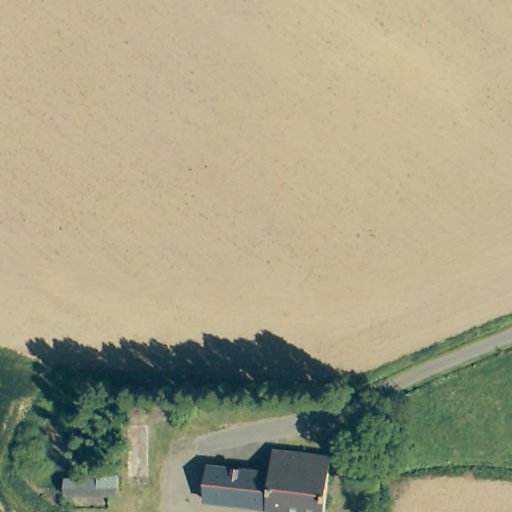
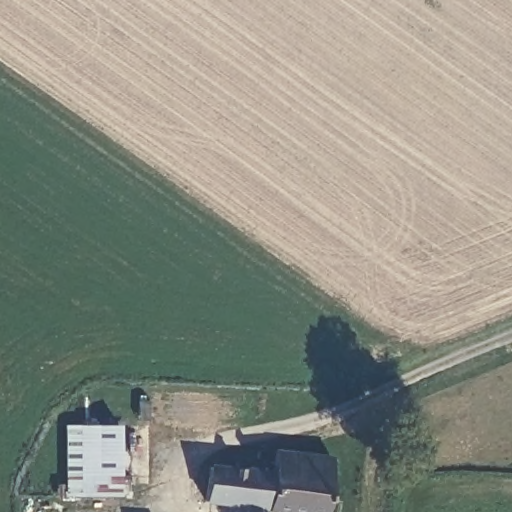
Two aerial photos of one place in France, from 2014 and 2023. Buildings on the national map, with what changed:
new [(120,496),(66,495),(67,423),(119,425),(120,496)]
demolished [(128,478),(130,425),(150,425),(150,478),(128,478)]
unchanged [(325,512),(301,512),(205,500),(208,465),(273,470),(275,449),(331,455),(325,512)]
demolished [(120,495),(68,497),(69,479),(86,480),(86,471),(121,470),(120,495)]

